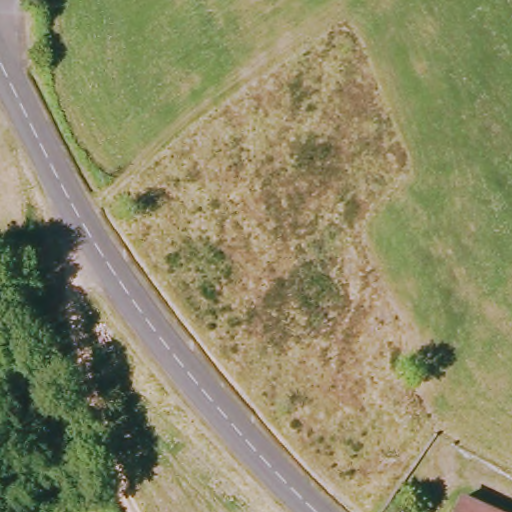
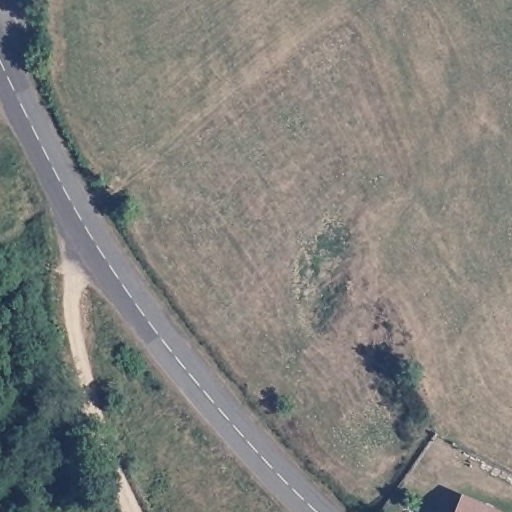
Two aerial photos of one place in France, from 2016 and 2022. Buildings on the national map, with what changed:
unchanged [(491,512),(449,512),(456,495),(491,512)]

